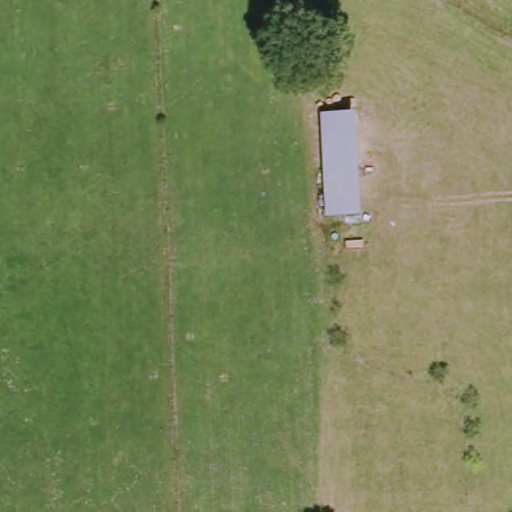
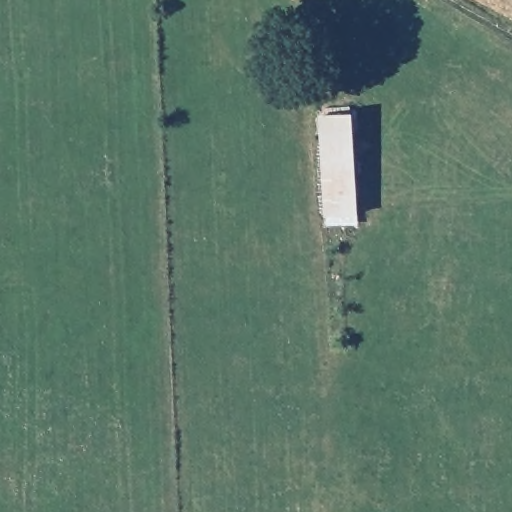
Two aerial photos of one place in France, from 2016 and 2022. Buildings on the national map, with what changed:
unchanged [(325,110),(355,108),(360,208),(330,210),(325,110)]

